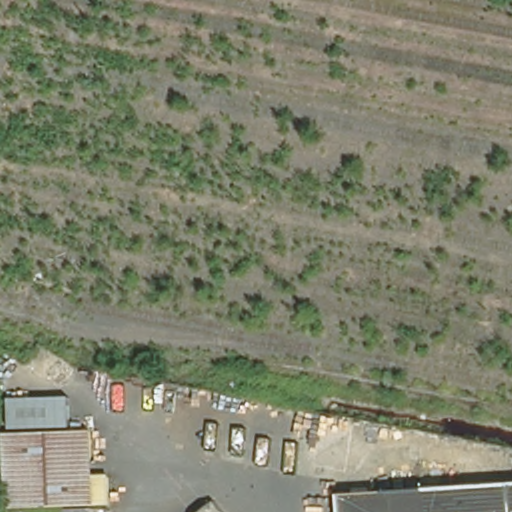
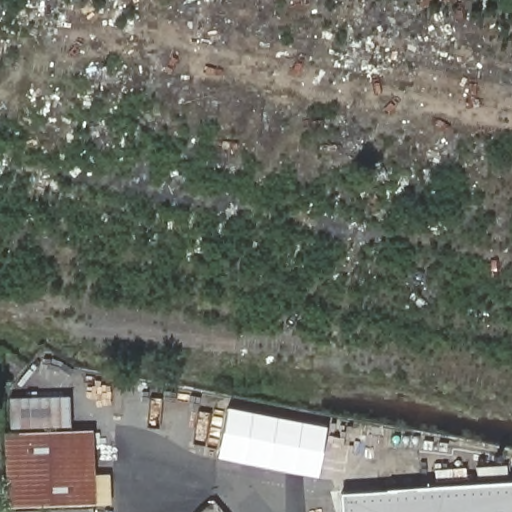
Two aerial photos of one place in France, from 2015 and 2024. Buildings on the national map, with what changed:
new [(70,431),(11,433),(9,398),(69,397),(70,431)]
new [(218,460),(228,408),(325,427),(315,478),(218,460)]
unchanged [(0,434),(85,431),(87,477),(103,476),(104,503),(88,504),(4,508),(0,434)]
unchanged [(383,492),(512,484),(512,512),(368,512),(383,492)]
unchanged [(339,496),(361,494),(383,492),(368,512),(340,512),(339,496)]
unchanged [(221,512),(190,512),(209,497),(221,512)]
unchanged [(4,511),(86,508),(87,512),(4,512),(4,511)]

